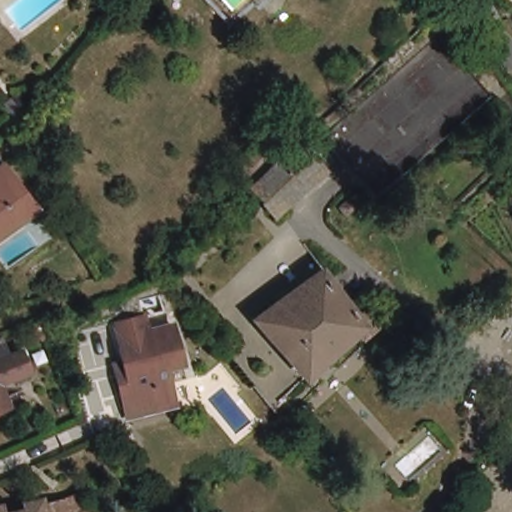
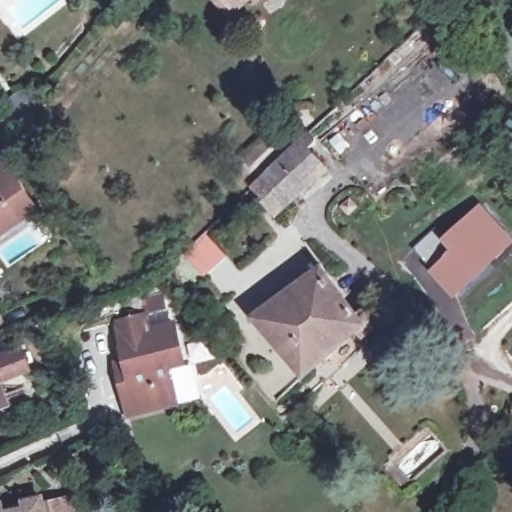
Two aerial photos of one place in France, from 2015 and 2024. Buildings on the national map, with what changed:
unchanged [(222,6),(217,1),(219,0),(228,0),(222,6)]
unchanged [(248,0),(251,0),(249,1),(248,0)]
unchanged [(2,121),(12,113),(5,105),(18,94),(32,108),(20,122),(9,130),(2,121)]
unchanged [(305,148),(310,153),(306,161),(303,165),(323,186),(273,229),(248,203),(272,180),(273,177),(305,148)]
unchanged [(0,173),(3,170),(30,212),(0,233),(0,173)]
new [(432,229),(439,238),(480,201),(512,237),(512,244),(452,298),(427,270),(448,249),(444,244),(427,262),(412,247),(432,229)]
unchanged [(352,314),(365,330),(351,343),(345,335),(293,380),(243,322),(307,277),(342,321),(352,314)]
unchanged [(127,361),(117,323),(147,316),(150,329),(160,326),(174,323),(184,364),(167,368),(177,406),(130,418),(118,373),(117,364),(127,361)]
unchanged [(0,388),(0,366),(8,385),(0,388)]
unchanged [(27,504),(42,501),(43,507),(67,502),(70,512),(19,512),(27,510),(27,504)]
unchanged [(5,512),(0,512),(0,506),(4,505),(5,512)]

